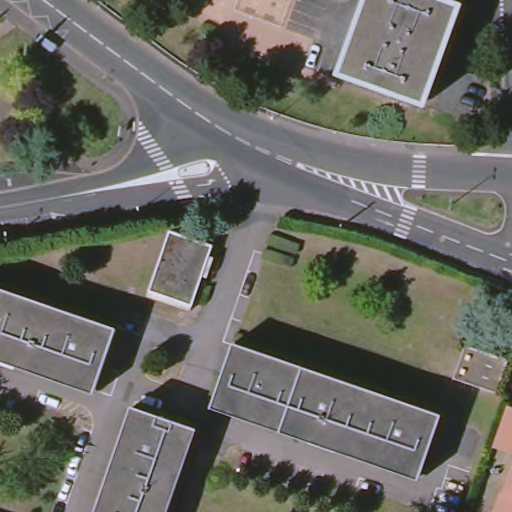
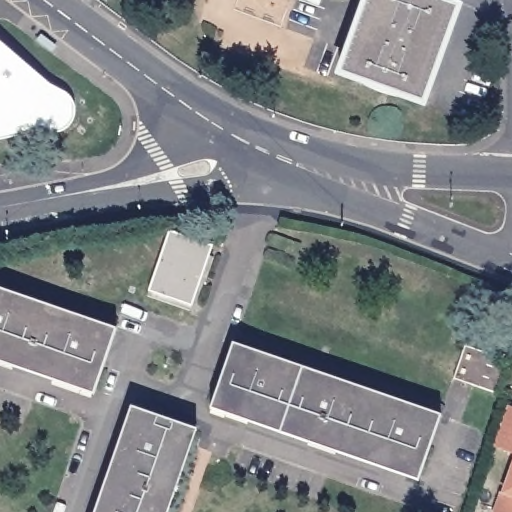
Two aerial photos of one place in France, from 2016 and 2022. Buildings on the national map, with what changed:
unchanged [(420,104),(338,75),(365,0),(432,0),(455,9),(420,104)]
new [(55,91),(69,96),(75,107),(75,116),(72,129),(64,135),(50,137),(32,135),(0,145),(0,49),(36,80),(55,91)]
unchanged [(149,290),(169,231),(211,246),(191,305),(149,290)]
unchanged [(0,290),(115,330),(95,390),(0,356),(0,290)]
unchanged [(212,403),(232,345),(440,417),(418,475),(212,403)]
unchanged [(453,377),(465,346),(506,361),(495,393),(453,377)]
unchanged [(494,446),(508,406),(512,407),(512,453),(494,446)]
unchanged [(132,408),(191,428),(162,512),(96,512),(132,408)]
unchanged [(500,503),(512,468),(512,512),(497,512),(500,503)]

